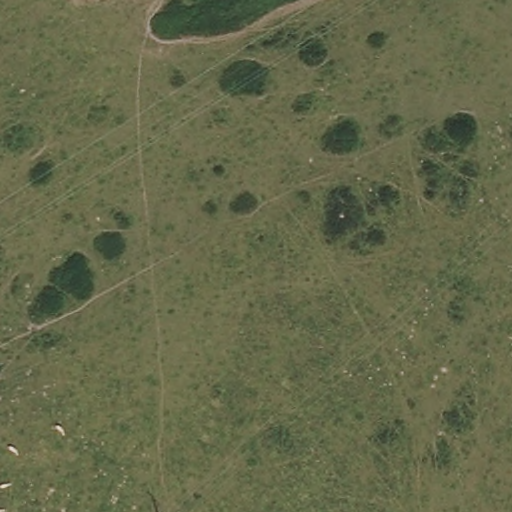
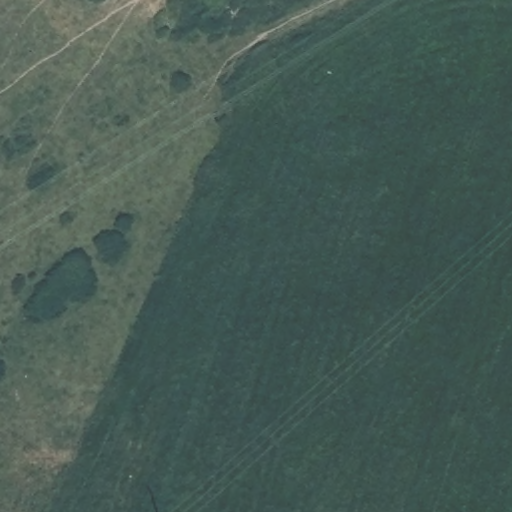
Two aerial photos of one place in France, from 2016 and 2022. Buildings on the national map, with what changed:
[]

